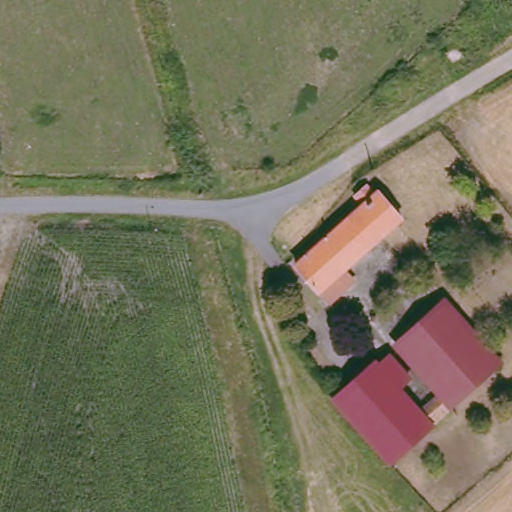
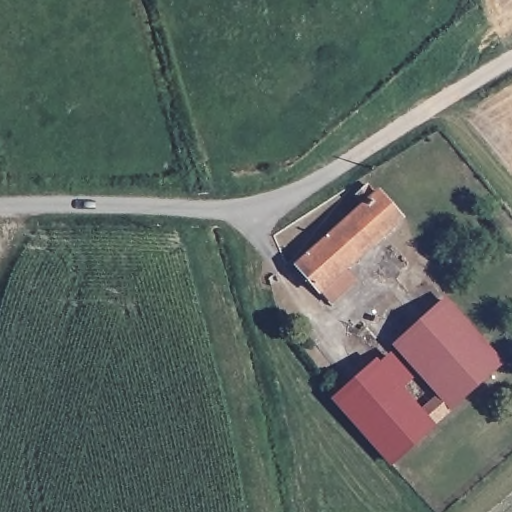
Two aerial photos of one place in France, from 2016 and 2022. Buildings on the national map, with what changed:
unchanged [(359,207),(352,197),(364,186),(372,195),(376,193),(398,219),(316,293),(295,269),(359,207)]
unchanged [(386,358),(406,380),(398,388),(418,409),(436,394),(394,346),(444,304),(498,364),(387,462),(335,405),(386,358)]

